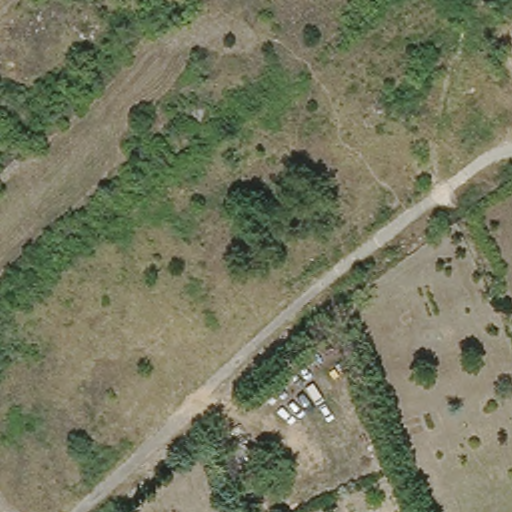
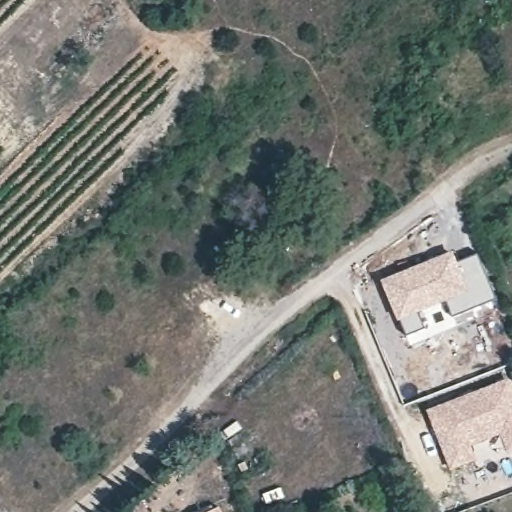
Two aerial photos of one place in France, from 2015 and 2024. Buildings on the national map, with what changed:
new [(453,250),(457,261),(477,253),(496,299),(451,319),(444,304),(420,313),(431,335),(410,345),(380,280),(453,250)]
new [(508,377),(512,387),(512,452),(507,454),(498,435),(471,447),(476,459),(450,470),(426,410),(508,377)]
new [(220,508),(222,512),(210,512),(220,508)]

